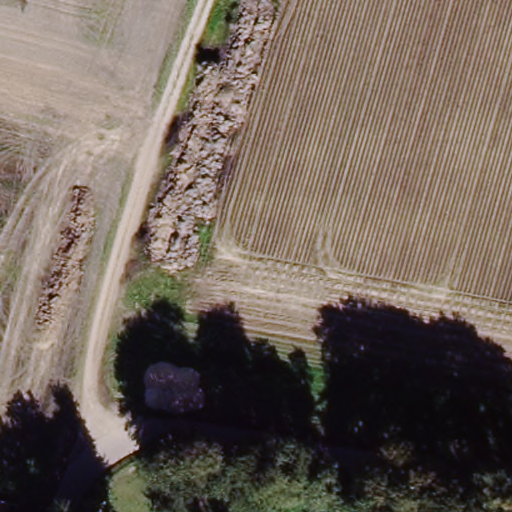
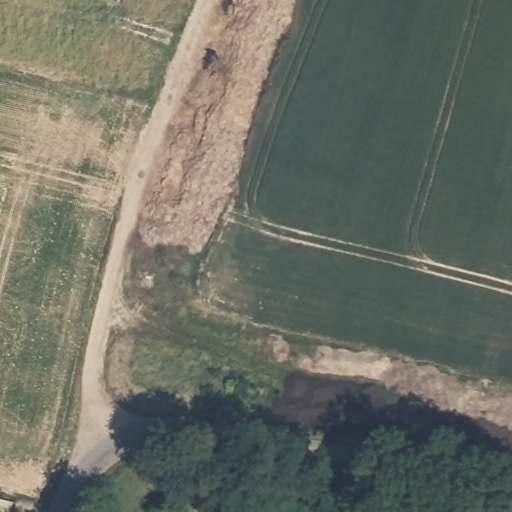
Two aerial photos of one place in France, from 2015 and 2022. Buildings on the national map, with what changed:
[]

